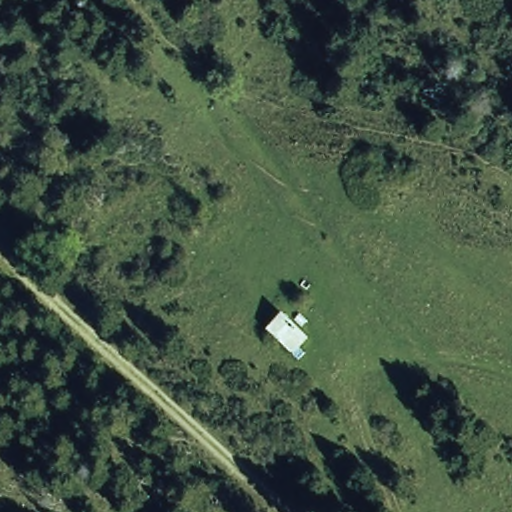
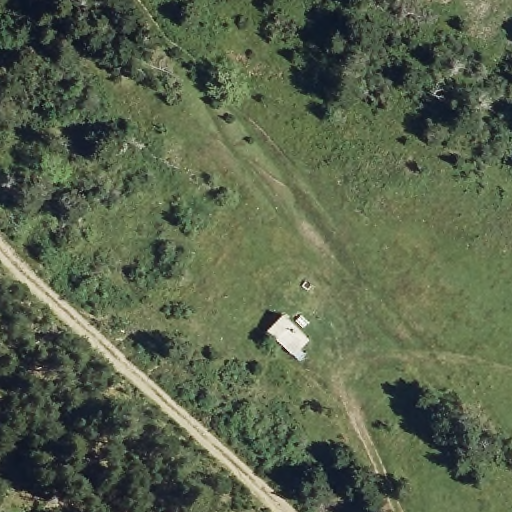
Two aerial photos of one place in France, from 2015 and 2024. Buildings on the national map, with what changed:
unchanged [(312,343),(292,361),(266,332),(283,314),(312,343)]

